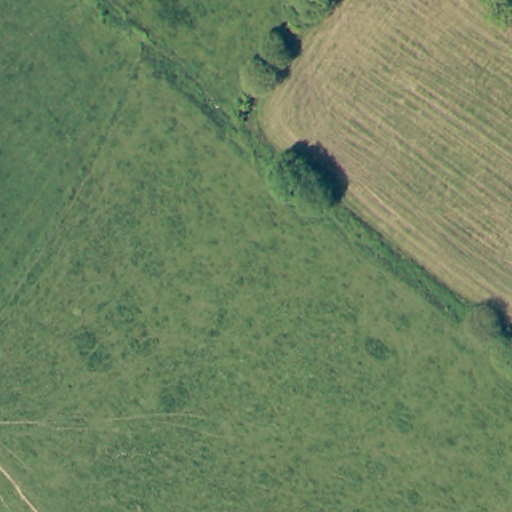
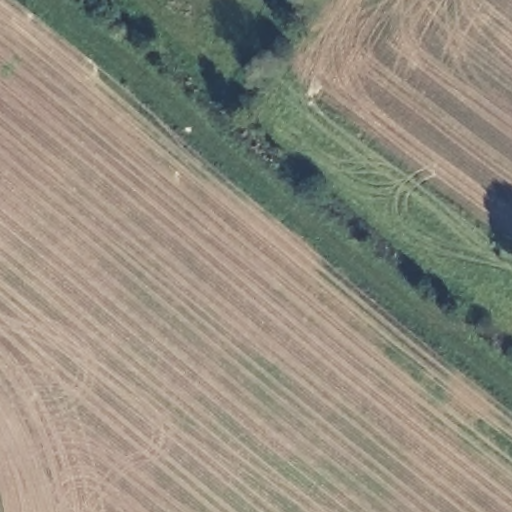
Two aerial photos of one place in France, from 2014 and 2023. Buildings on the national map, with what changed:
[]

